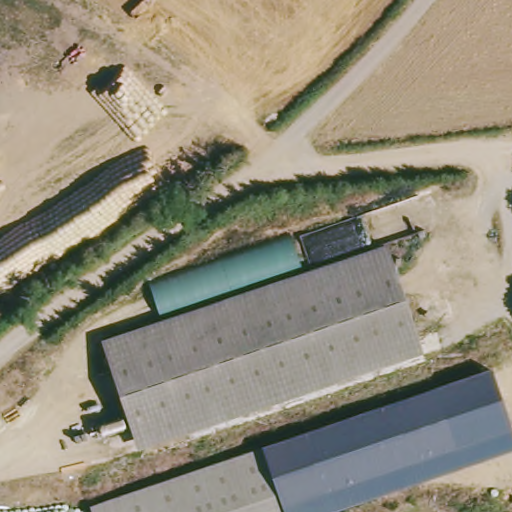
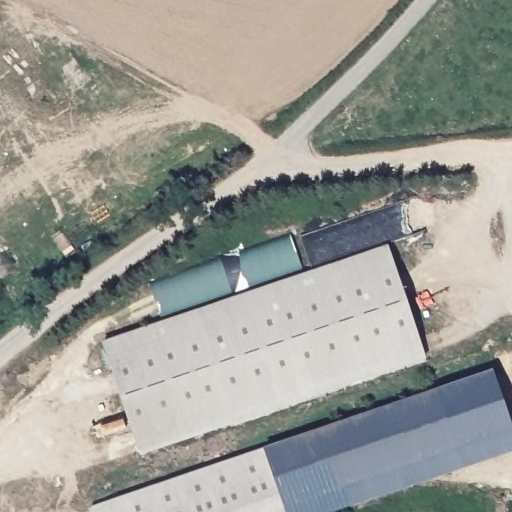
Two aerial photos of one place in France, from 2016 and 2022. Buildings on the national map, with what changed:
unchanged [(153,288),(291,240),(300,268),(163,318),(153,288)]
unchanged [(103,345),(389,247),(424,358),(139,455),(103,345)]
unchanged [(263,452),(494,372),(512,428),(512,456),(343,512),(91,512),(91,510),(263,452)]

